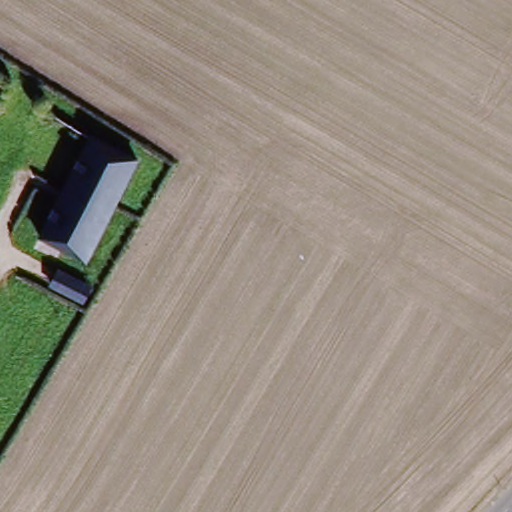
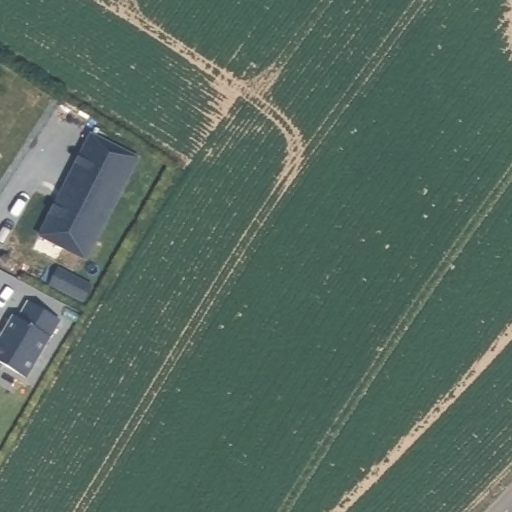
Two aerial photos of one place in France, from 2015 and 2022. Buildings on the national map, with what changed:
unchanged [(82,257),(40,234),(88,136),(130,160),(82,257)]
new [(57,271),(89,287),(83,300),(51,284),(57,271)]
new [(14,318),(18,320),(28,303),(59,321),(25,378),(0,363),(0,341),(14,318)]

